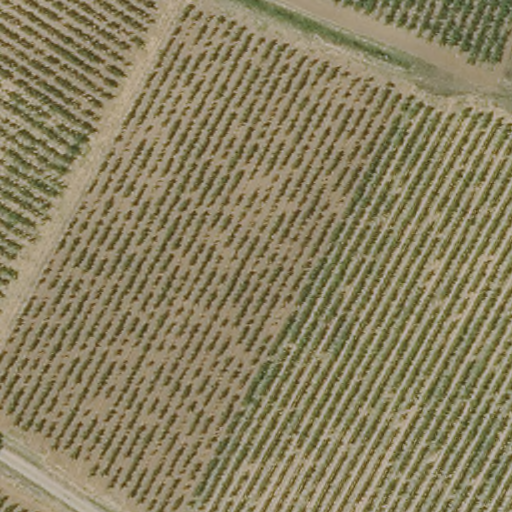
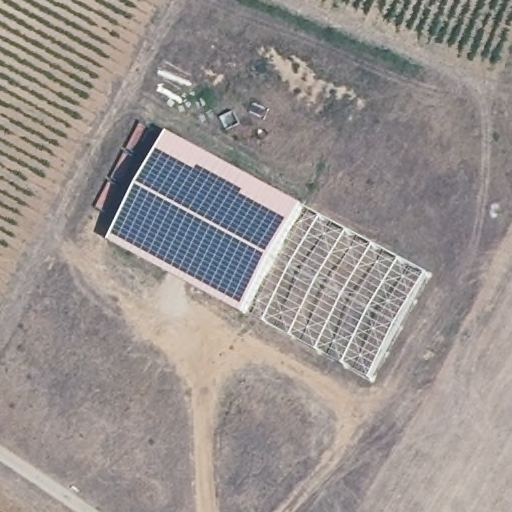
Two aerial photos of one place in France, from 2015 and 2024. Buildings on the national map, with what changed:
new [(110,239),(167,133),(303,205),(245,312),(110,239)]
new [(427,276),(372,382),(245,312),(303,205),(427,276)]

